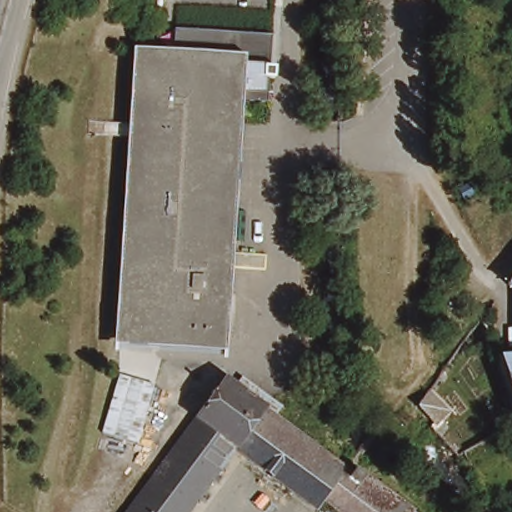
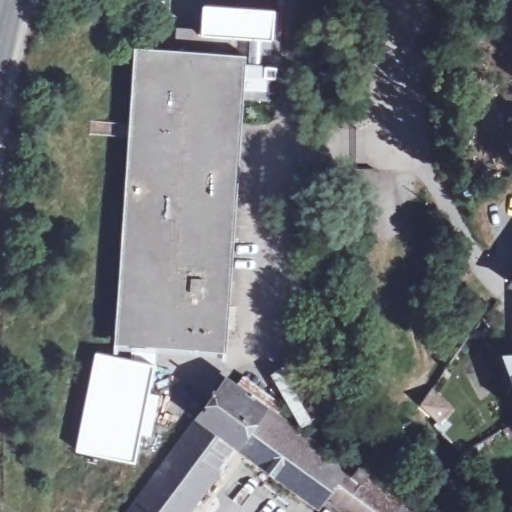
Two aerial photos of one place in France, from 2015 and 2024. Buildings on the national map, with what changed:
unchanged [(238,102),(222,353),(118,346),(135,59),(168,61),(170,31),(206,33),(207,7),(232,7),(279,10),(277,36),(269,36),(265,104),(238,102)]
unchanged [(509,286),(512,281),(512,286),(509,286)]
new [(149,393),(160,395),(152,437),(140,434),(135,462),(77,450),(96,352),(130,360),(130,347),(157,348),(155,365),(149,393)]
unchanged [(512,352),(512,373),(504,354),(512,352)]
unchanged [(193,512),(125,512),(230,372),(424,512),(336,512),(326,505),(319,512),(318,512),(238,451),(193,512)]
unchanged [(435,390),(452,407),(441,420),(424,406),(435,390)]

